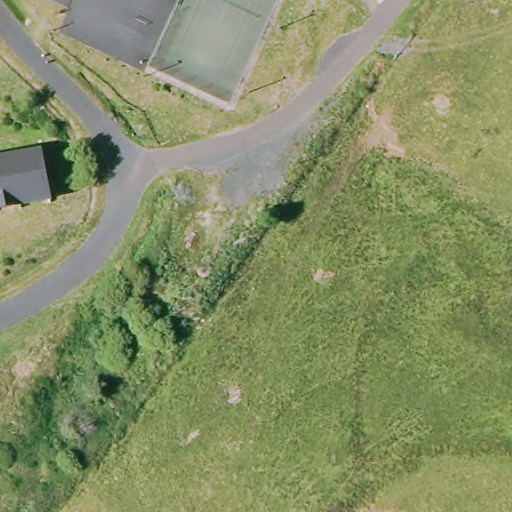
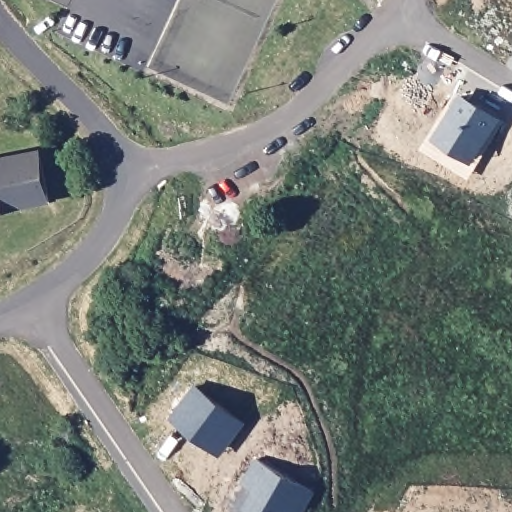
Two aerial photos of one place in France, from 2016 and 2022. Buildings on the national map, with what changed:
new [(457,100),(492,122),(467,162),(432,140),(457,100)]
unchanged [(47,200),(0,207),(0,169),(42,163),(47,200)]
new [(194,391),(241,427),(217,458),(170,422),(194,391)]
new [(257,460),(310,499),(300,512),(288,512),(285,509),(283,512),(255,512),(242,502),(255,486),(244,477),(257,460)]

